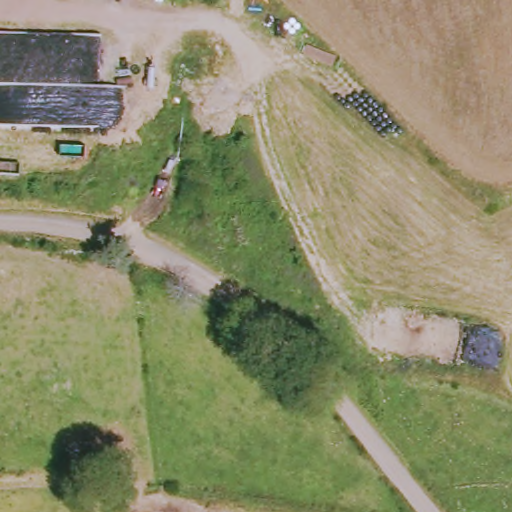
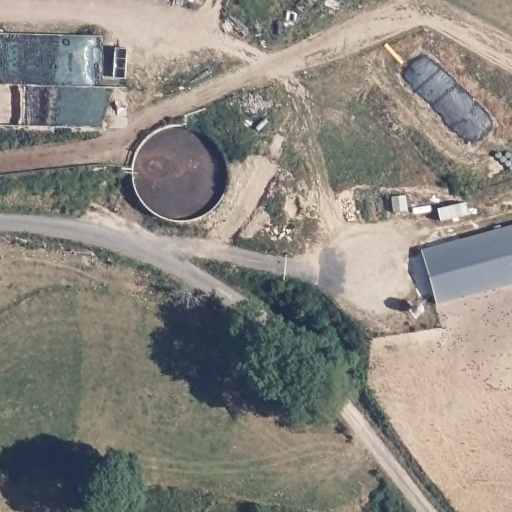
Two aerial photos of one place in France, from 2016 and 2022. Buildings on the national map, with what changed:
new [(437,302),(423,249),(512,226),(512,282),(437,302)]

